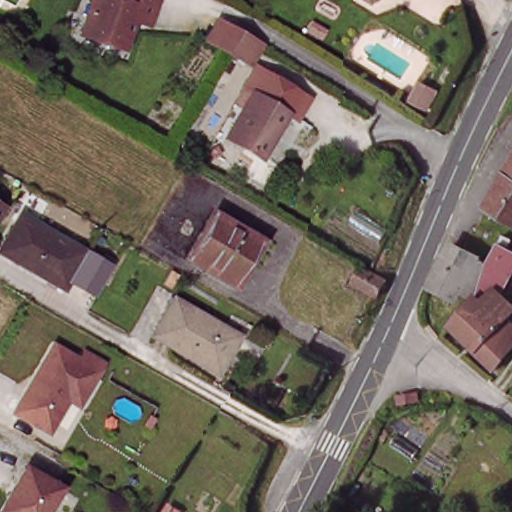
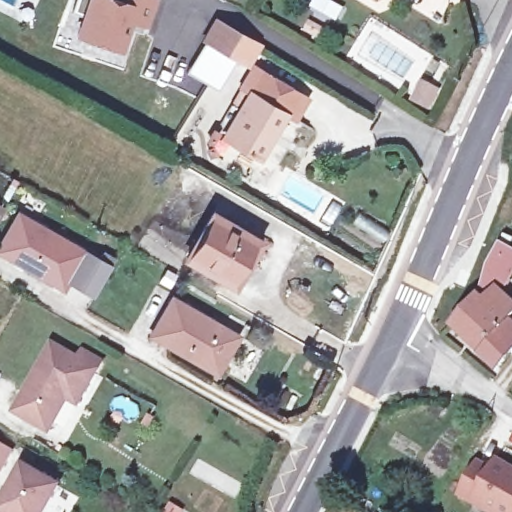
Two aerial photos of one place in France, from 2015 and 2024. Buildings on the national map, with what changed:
unchanged [(154,0),(160,2),(151,29),(135,24),(125,53),(86,41),(99,0),(103,0),(120,5),(121,0),(154,0)]
unchanged [(247,68),(225,56),(205,45),(217,24),(238,35),(258,46),(247,68)]
unchanged [(442,89),(432,112),(411,101),(423,80),(442,89)]
unchanged [(283,113),(260,155),(227,137),(250,95),(283,113)]
unchanged [(512,166),(512,224),(483,208),(512,166)]
unchanged [(0,218),(0,208),(5,211),(0,218)]
unchanged [(80,252),(60,290),(0,257),(0,248),(17,218),(80,252)]
unchanged [(251,245),(227,287),(184,263),(207,221),(251,245)]
unchanged [(485,265),(472,293),(460,287),(452,302),(428,288),(450,244),(485,265)]
unchanged [(512,256),(512,288),(500,308),(512,317),(512,356),(503,369),(450,331),(467,304),(504,251),(512,256)]
unchanged [(360,267),(387,283),(378,300),(375,298),(350,284),(360,267)]
unchanged [(235,338),(214,372),(149,339),(170,303),(235,338)]
unchanged [(48,342),(75,356),(79,348),(96,358),(73,397),(63,392),(45,423),(11,405),(48,342)]
new [(0,477),(0,443),(15,451),(0,477)]
new [(456,495),(477,458),(490,466),(495,457),(512,466),(512,512),(485,512),(470,503),(456,495)]
unchanged [(56,487),(42,512),(1,512),(0,512),(0,505),(21,468),(56,487)]

